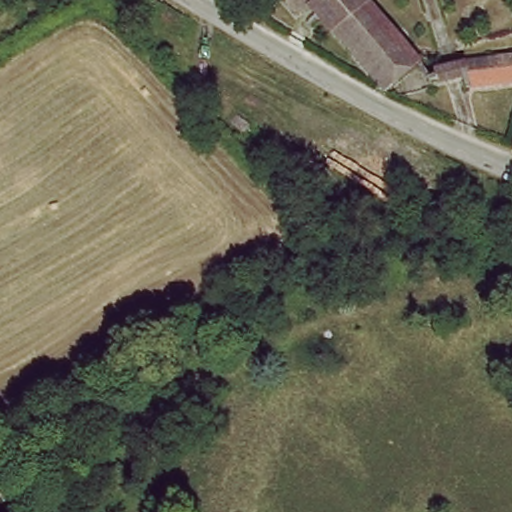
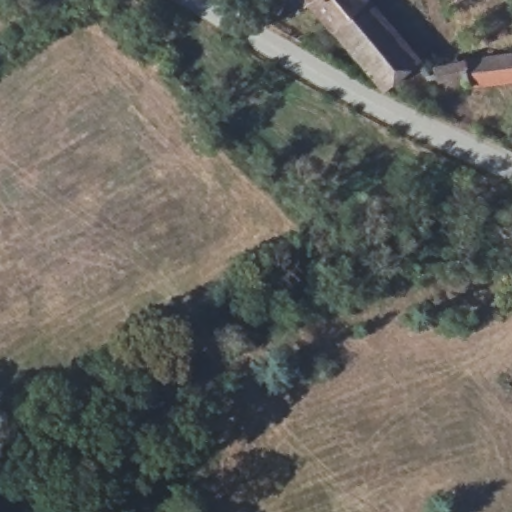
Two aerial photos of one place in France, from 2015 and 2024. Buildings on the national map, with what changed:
unchanged [(292,0),(310,0),(300,9),(292,0)]
unchanged [(387,84),(313,0),(373,0),(421,54),(387,84)]
unchanged [(179,9),(172,19),(164,14),(170,4),(179,9)]
unchanged [(462,60),(512,51),(512,77),(468,85),(462,60)]

